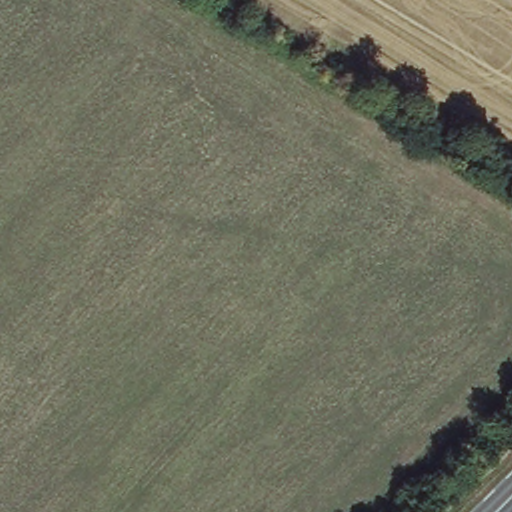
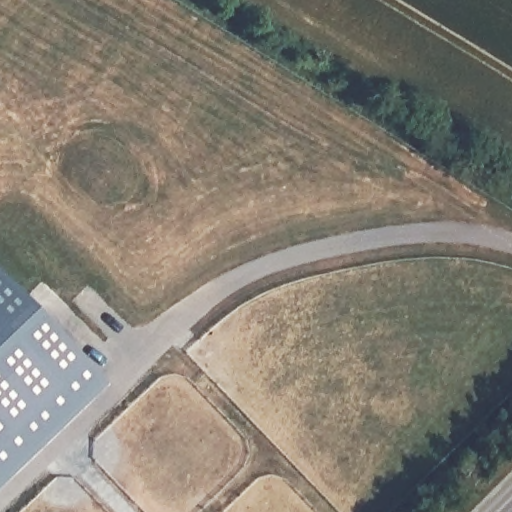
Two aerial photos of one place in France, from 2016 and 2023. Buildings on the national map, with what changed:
new [(0,476),(0,290),(95,385),(0,476)]

